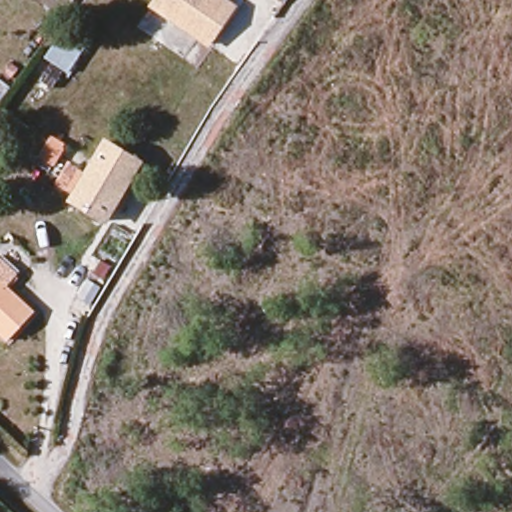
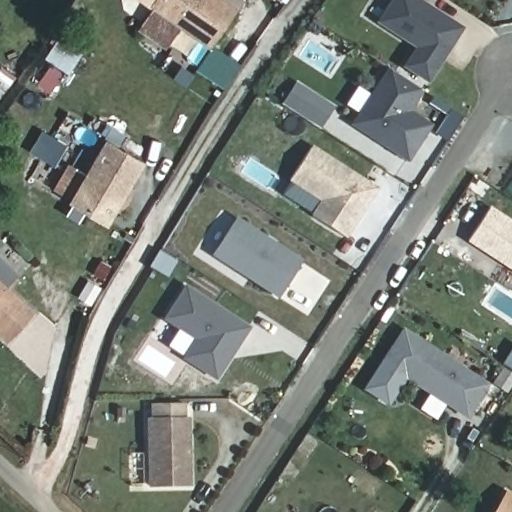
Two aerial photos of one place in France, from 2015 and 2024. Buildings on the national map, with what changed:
unchanged [(209,49),(150,6),(154,0),(226,0),(236,7),(209,49)]
new [(415,50),(376,23),(392,0),(422,0),(466,29),(427,85),(403,68),(415,50)]
new [(17,79),(0,100),(0,68),(2,66),(17,79)]
new [(411,110),(433,125),(408,162),(350,125),(387,67),(423,92),(411,110)]
new [(321,129),(281,105),(296,81),(335,106),(321,129)]
unchanged [(106,221),(69,201),(105,142),(137,164),(106,221)]
new [(312,145),(377,187),(346,238),(311,215),(319,201),(288,181),(312,145)]
new [(467,241),(489,206),(512,221),(512,271),(467,241)]
new [(236,217),(302,260),(278,298),(211,255),(236,217)]
unchanged [(6,342),(0,338),(0,282),(33,310),(6,342)]
new [(163,320),(186,285),(251,326),(214,383),(182,358),(192,339),(163,320)]
new [(467,418),(381,362),(402,327),(490,383),(467,418)]
new [(192,486),(149,487),(147,419),(152,419),(151,403),(185,403),(186,416),(190,416),(192,486)]
new [(512,496),(512,512),(496,512),(507,493),(512,496)]

